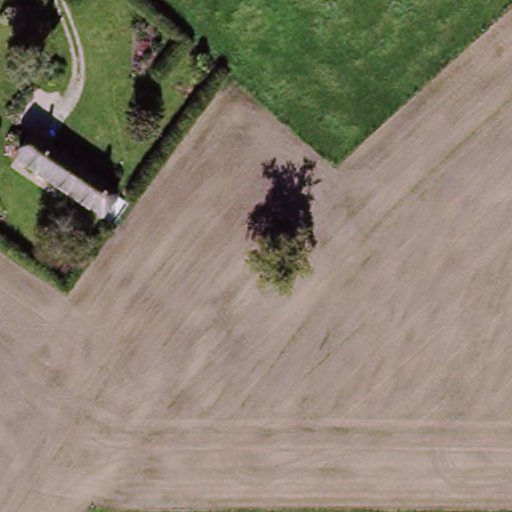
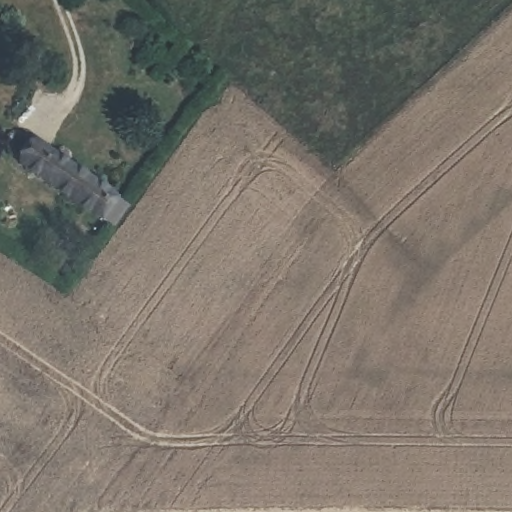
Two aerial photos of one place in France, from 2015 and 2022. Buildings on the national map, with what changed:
unchanged [(95,227),(18,168),(35,147),(111,205),(95,227)]

